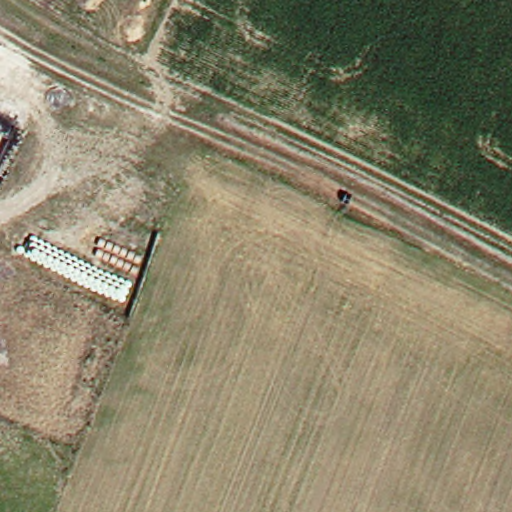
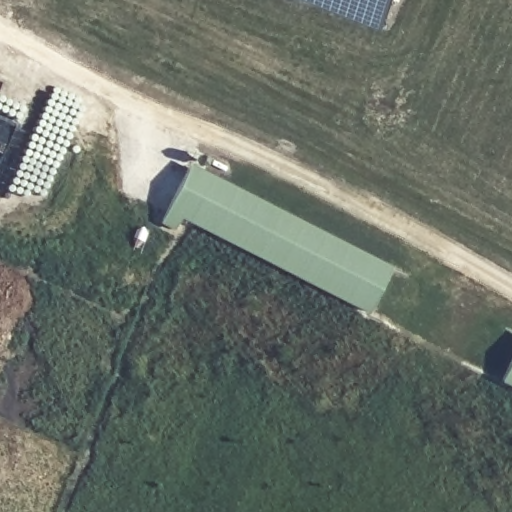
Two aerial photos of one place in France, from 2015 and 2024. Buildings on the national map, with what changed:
new [(287,0),(399,0),(382,40),(287,0)]
new [(186,170),(387,274),(366,315),(180,218),(172,231),(158,224),(186,170)]
new [(512,387),(501,381),(512,359),(512,387)]

